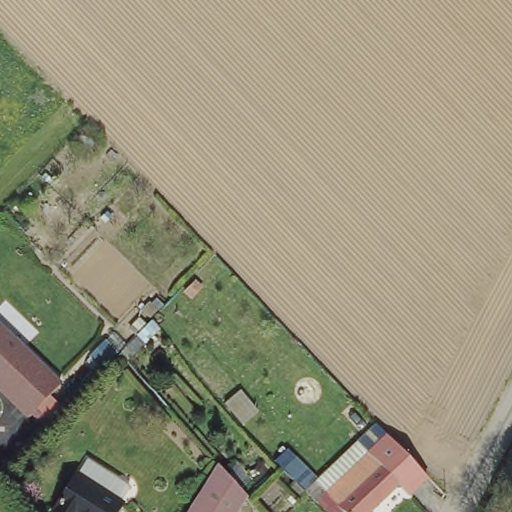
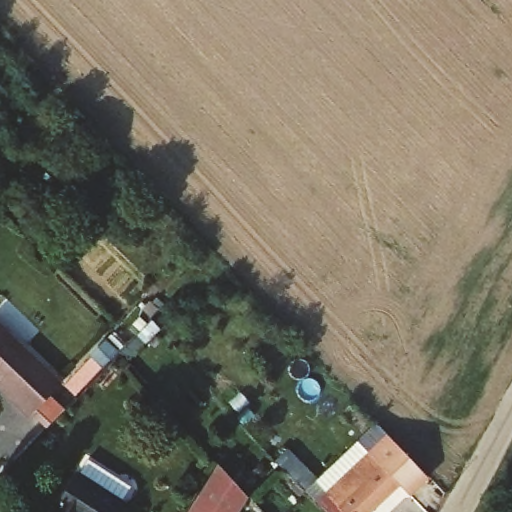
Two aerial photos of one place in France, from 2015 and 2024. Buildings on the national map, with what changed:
unchanged [(5,331),(61,385),(30,417),(0,389),(0,327),(5,331)]
unchanged [(428,470),(407,490),(397,478),(363,512),(330,512),(313,495),(327,482),(335,490),(360,465),(352,457),(385,425),(428,470)]
unchanged [(73,472),(80,461),(104,477),(123,490),(113,503),(107,512),(46,512),(73,472)]
unchanged [(219,464),(245,494),(233,512),(187,512),(219,464)]

